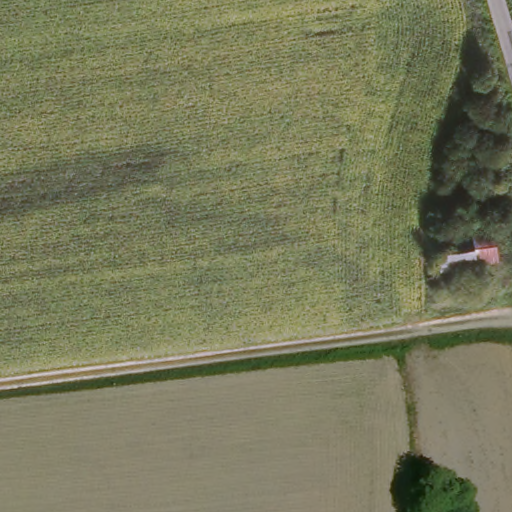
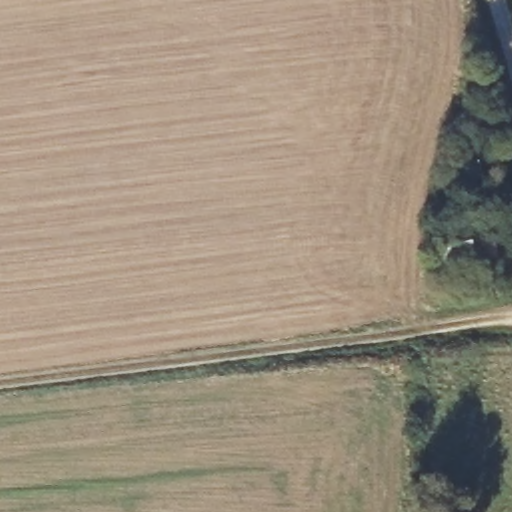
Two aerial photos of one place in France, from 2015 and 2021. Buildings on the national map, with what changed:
unchanged [(491,259),(437,268),(429,233),(485,222),(491,259)]

